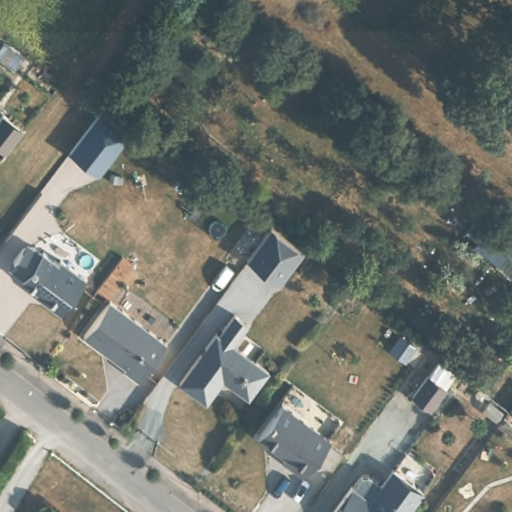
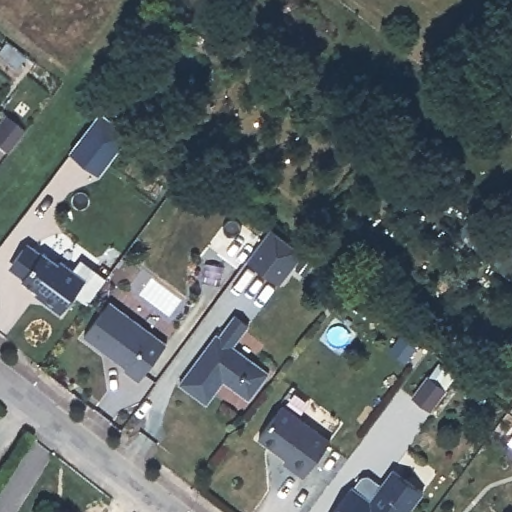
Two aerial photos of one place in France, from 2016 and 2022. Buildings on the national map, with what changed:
unchanged [(15,69),(0,56),(0,44),(2,41),(25,57),(15,69)]
unchanged [(0,113),(1,112),(22,129),(5,151),(0,148),(0,113)]
unchanged [(101,114),(127,139),(99,176),(70,152),(101,114)]
unchanged [(305,253),(281,285),(249,261),(271,229),(305,253)]
unchanged [(84,276),(59,311),(44,298),(46,296),(22,277),(24,276),(15,268),(12,257),(22,244),(34,244),(41,250),(43,249),(57,261),(60,257),(84,276)]
unchanged [(164,340),(136,377),(122,367),(125,365),(81,333),(109,298),(164,340)]
unchanged [(195,392),(178,380),(199,351),(203,353),(206,347),(204,346),(215,331),(218,332),(233,312),(247,322),(231,343),(267,370),(247,396),(222,377),(215,386),(205,401),(195,392)]
unchanged [(428,372),(445,385),(430,407),(411,395),(428,372)]
unchanged [(327,439),(302,473),(282,460),(285,455),(257,434),(280,402),(327,439)]
unchanged [(361,475),(367,473),(380,482),(391,467),(422,490),(405,512),(331,512),(351,485),(353,486),(361,475)]

